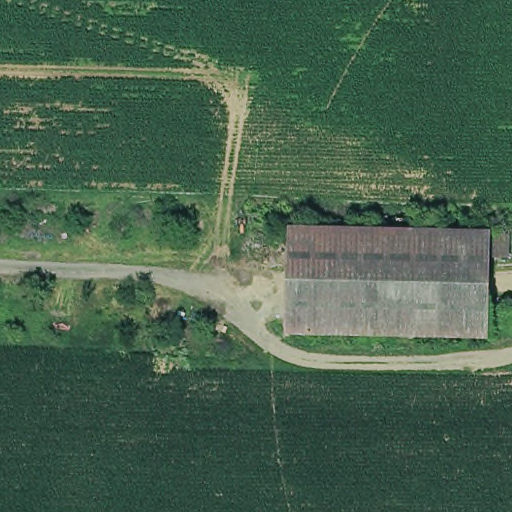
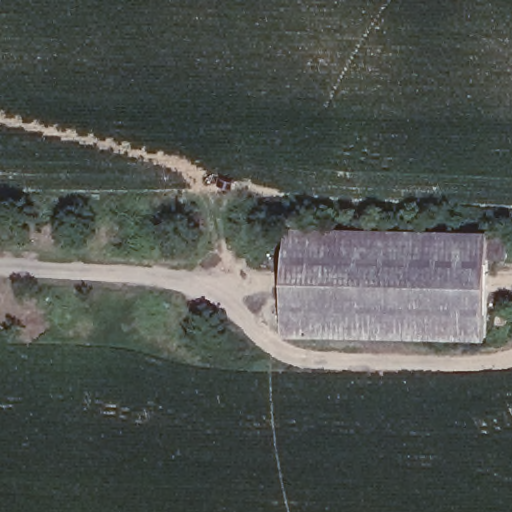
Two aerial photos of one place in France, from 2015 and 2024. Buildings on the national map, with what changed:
unchanged [(480,231),(480,338),(283,335),(283,229),(480,231)]

